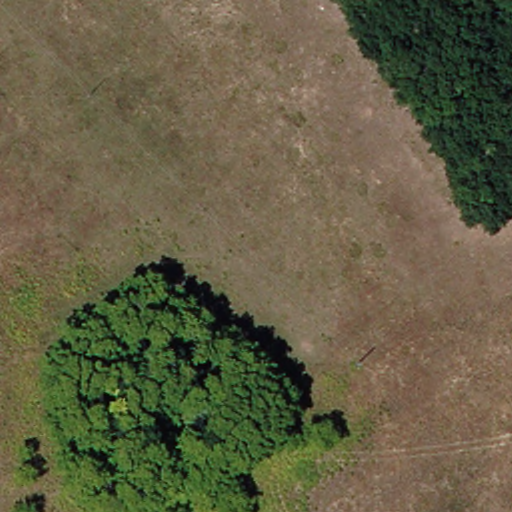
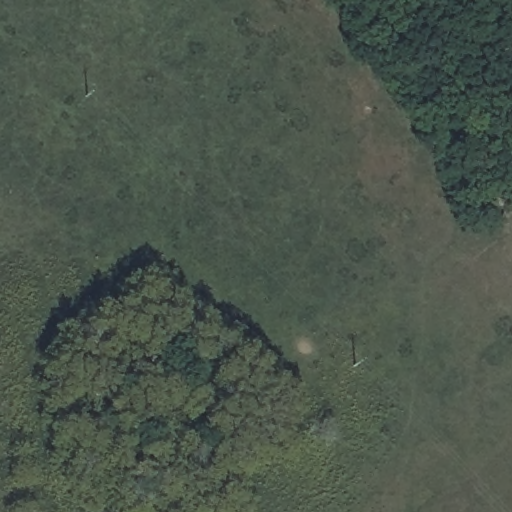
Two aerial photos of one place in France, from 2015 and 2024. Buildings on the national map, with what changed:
unchanged [(171,427),(186,442),(165,461),(150,445),(171,427)]

